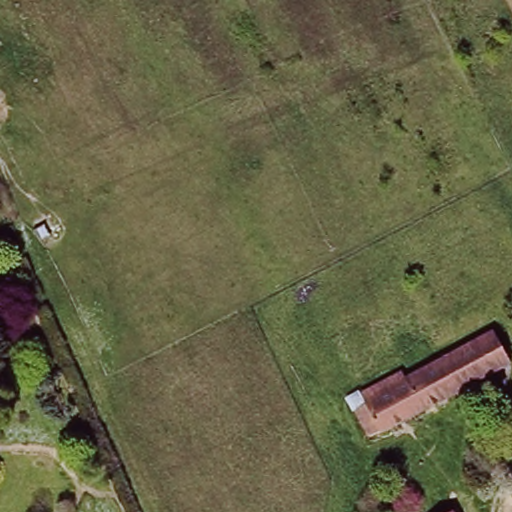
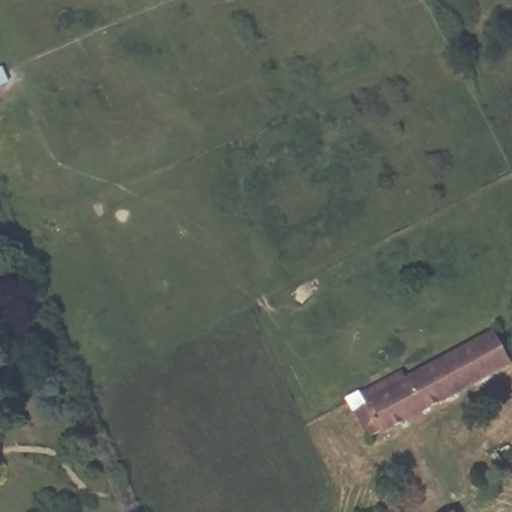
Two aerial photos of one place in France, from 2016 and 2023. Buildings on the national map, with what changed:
unchanged [(510,332),(512,337),(512,364),(509,366),(362,438),(349,413),(361,407),(356,395),(395,376),(399,383),(494,335),(496,340),(510,332)]
unchanged [(500,452),(512,446),(512,458),(507,461),(509,467),(484,481),(474,464),(499,450),(500,452)]
unchanged [(400,460),(413,480),(398,489),(386,470),(400,460)]
unchanged [(438,512),(432,512),(437,510),(438,512)]

